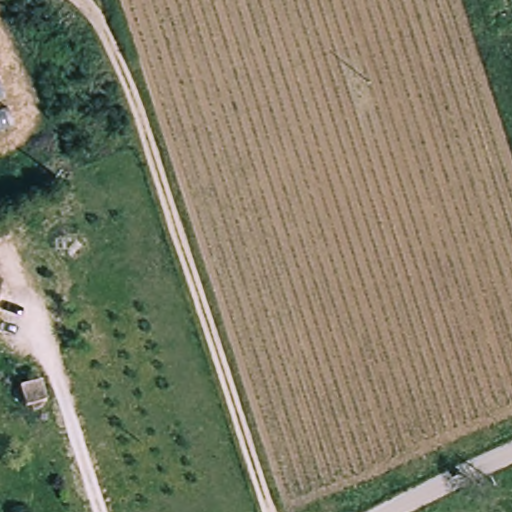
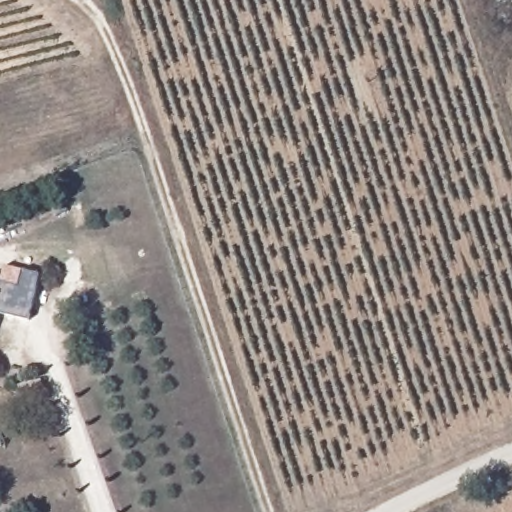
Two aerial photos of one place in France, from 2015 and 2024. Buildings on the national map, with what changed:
demolished [(0,132),(0,85),(15,126),(0,132)]
new [(0,279),(6,266),(41,274),(29,320),(0,313),(0,279)]

